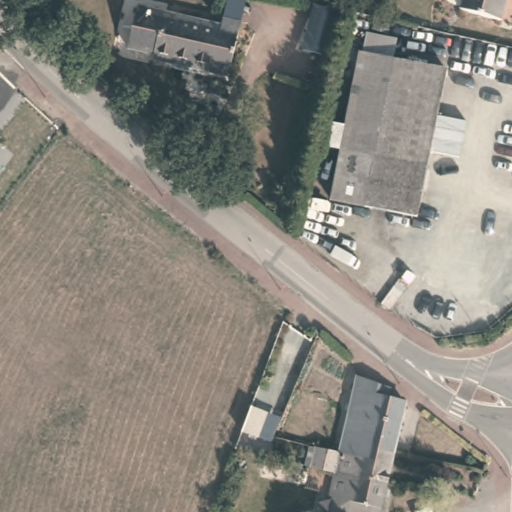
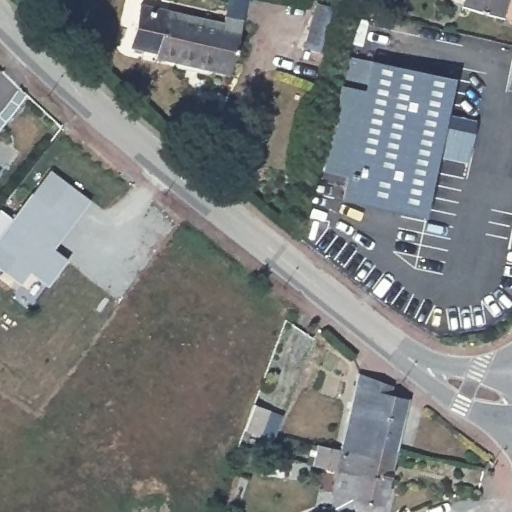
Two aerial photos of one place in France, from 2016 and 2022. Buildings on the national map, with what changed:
unchanged [(168,9),(222,21),(228,0),(245,0),(251,0),(232,77),(154,62),(157,52),(168,9)]
unchanged [(467,5),(468,0),(504,0),(501,14),(467,5)]
unchanged [(157,52),(129,46),(139,3),(168,9),(157,52)]
unchanged [(340,12),(328,56),(301,48),(313,6),(319,7),(340,12)]
unchanged [(371,30),(400,37),(394,56),(362,51),(371,30)]
unchanged [(329,143),(334,119),(349,121),(362,51),(448,65),(430,164),(345,146),(329,143)]
unchanged [(422,210),(339,193),(345,146),(430,164),(422,210)]
new [(54,248),(69,260),(47,287),(30,274),(21,286),(0,270),(10,257),(0,251),(0,209),(11,217),(32,192),(51,206),(68,183),(91,199),(54,248)]
unchanged [(366,440),(363,452),(347,448),(354,422),(348,421),(361,371),(387,377),(407,393),(414,399),(400,449),(366,440)]
unchanged [(261,424),(245,416),(256,393),(272,400),(261,424)]
unchanged [(389,479),(361,473),(325,465),(315,462),(320,442),(347,448),(363,452),(366,440),(400,449),(392,479),(389,479)]
unchanged [(331,512),(337,482),(322,479),(325,465),(361,473),(389,479),(392,479),(383,512),(331,512)]

